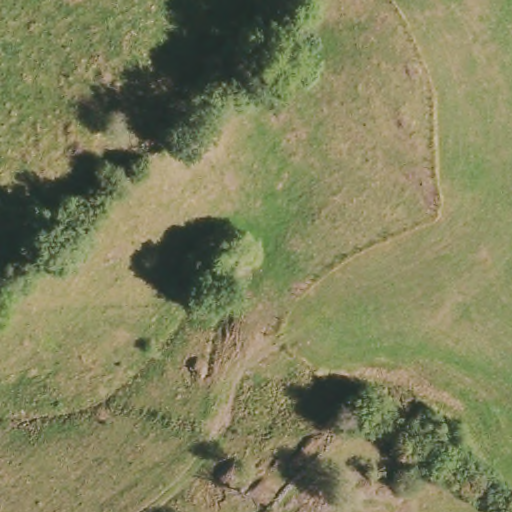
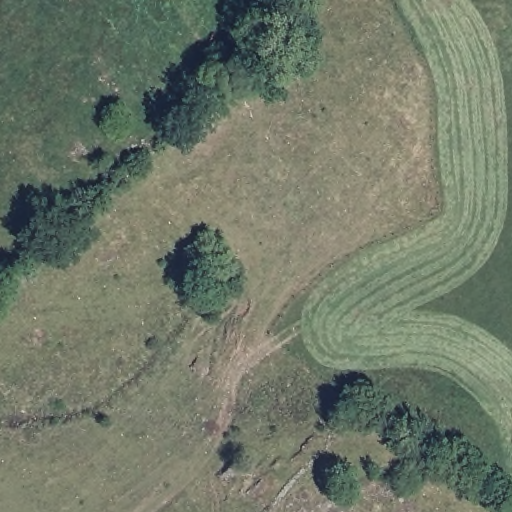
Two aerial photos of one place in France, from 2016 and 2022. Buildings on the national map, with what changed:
[]

